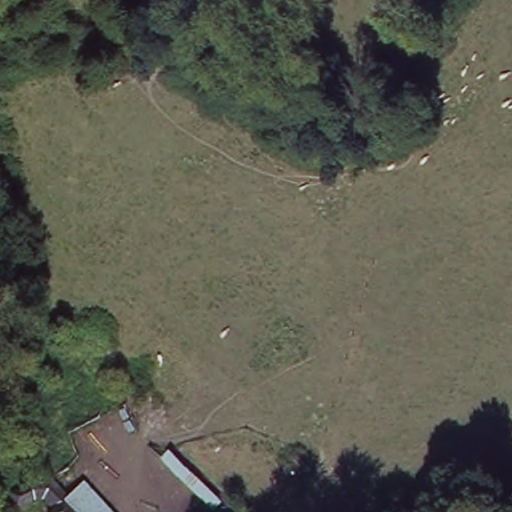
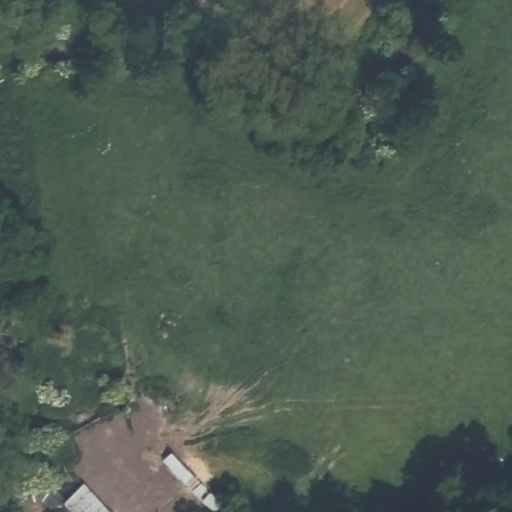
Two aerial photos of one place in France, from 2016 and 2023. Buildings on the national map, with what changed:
unchanged [(35,489),(24,478),(0,495),(0,475),(2,473),(0,471),(0,467),(17,453),(29,462),(31,458),(95,511),(103,504),(113,512),(42,512),(28,499),(35,489)]
unchanged [(229,502),(220,512),(212,512),(161,467),(174,453),(229,502)]

